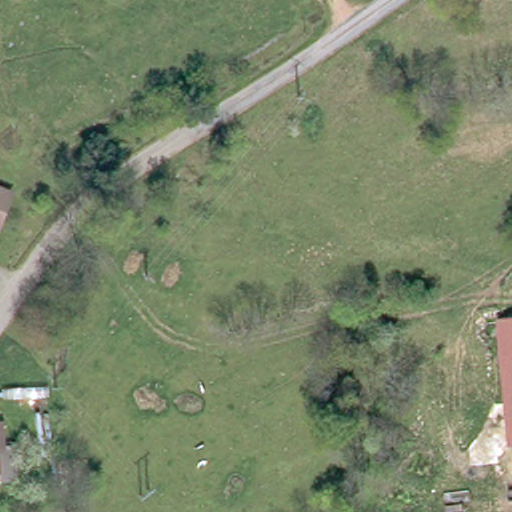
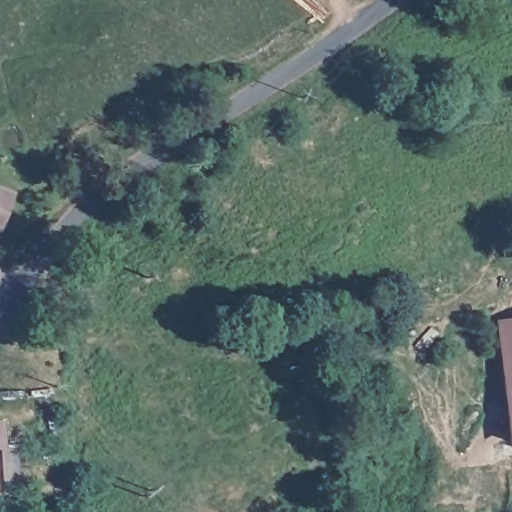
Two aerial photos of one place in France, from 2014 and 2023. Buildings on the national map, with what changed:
unchanged [(10,192),(0,219),(0,187),(10,192)]
unchanged [(512,445),(508,446),(494,321),(512,319),(512,445)]

